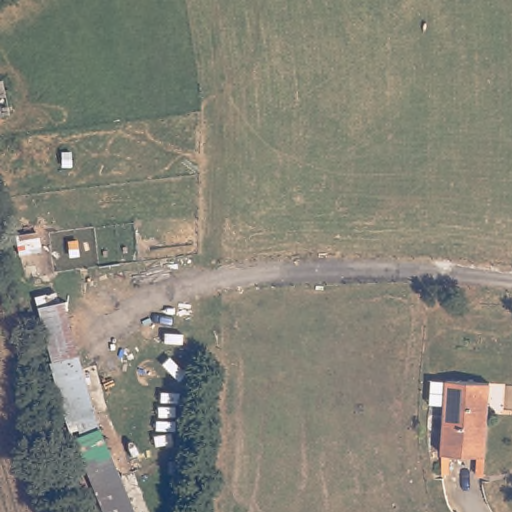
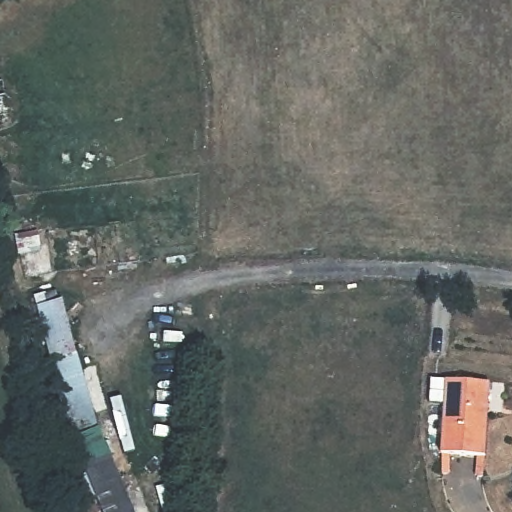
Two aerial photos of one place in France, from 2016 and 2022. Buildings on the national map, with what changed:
unchanged [(49,356),(80,348),(96,404),(66,418),(49,356)]
unchanged [(490,380),(484,454),(440,449),(446,376),(490,380)]

